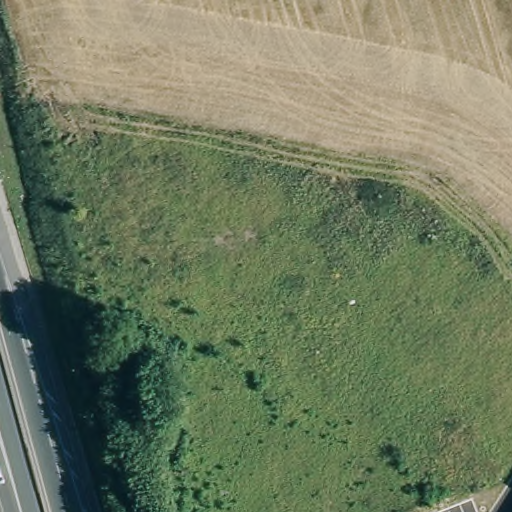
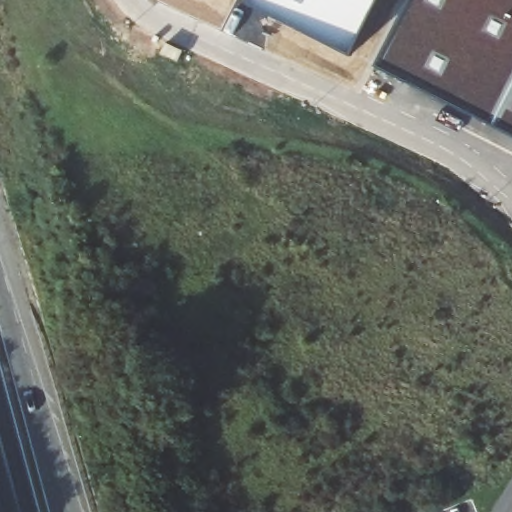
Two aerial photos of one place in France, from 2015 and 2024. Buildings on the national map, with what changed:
new [(349,55),(247,4),(248,0),(376,0),(349,55)]
new [(378,67),(411,0),(512,0),(512,136),(378,67)]

